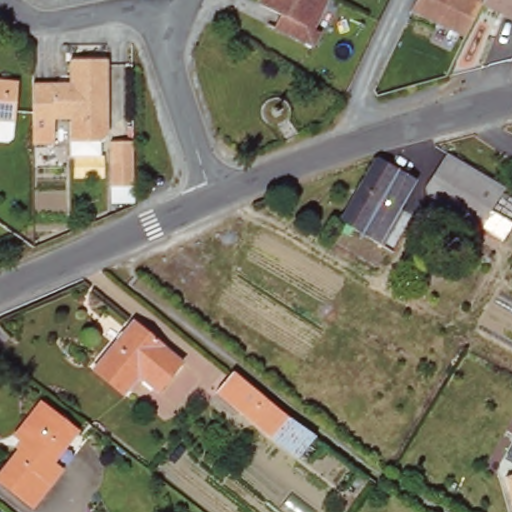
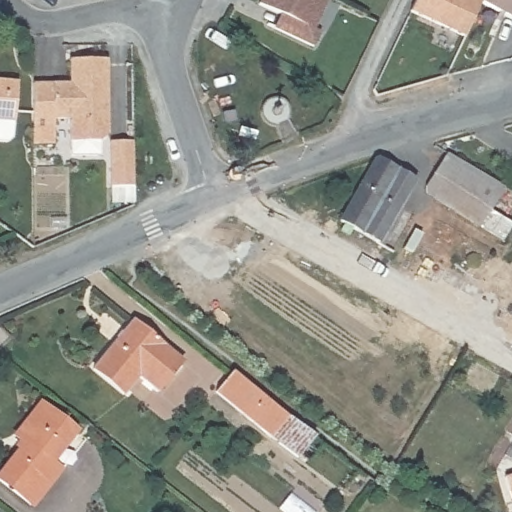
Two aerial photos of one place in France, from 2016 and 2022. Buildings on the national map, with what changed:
unchanged [(257,3),(259,0),(325,0),(310,27),(317,31),(310,44),(280,29),(271,25),(277,12),(257,3)]
unchanged [(482,4),(467,37),(413,14),(419,0),(484,0),(482,4)]
unchanged [(482,4),(484,0),(512,0),(512,17),(482,4)]
unchanged [(35,59),(110,60),(109,137),(100,143),(99,157),(70,157),(70,119),(55,119),(54,144),(34,144),(34,59),(35,59)]
unchanged [(16,122),(15,122),(15,138),(10,142),(0,141),(0,80),(19,81),(16,122)]
unchanged [(421,158),(383,225),(394,232),(385,248),(340,221),(388,139),(421,158)]
unchanged [(506,186),(493,209),(512,220),(512,231),(505,241),(423,192),(447,151),(506,186)]
unchanged [(126,159),(127,202),(105,202),(105,158),(126,159)]
unchanged [(184,361),(160,390),(141,374),(125,393),(95,367),(133,319),(184,361)]
unchanged [(302,454),(280,437),(224,391),(239,374),(293,419),(315,437),(302,454)]
unchanged [(22,445),(49,412),(80,438),(55,468),(65,477),(37,512),(5,486),(31,453),(22,445)]
unchanged [(509,481),(512,479),(512,489),(509,481)]

